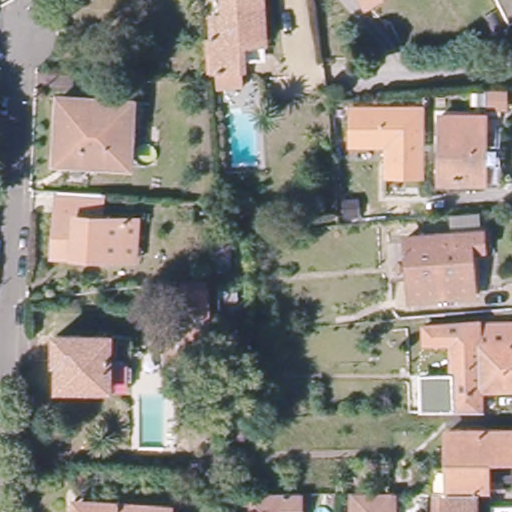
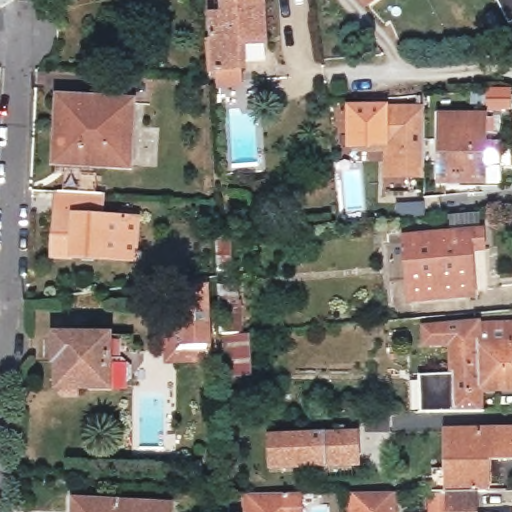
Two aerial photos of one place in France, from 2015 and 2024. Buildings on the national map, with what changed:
unchanged [(221,28),(219,6),(229,5),(229,0),(270,0),(271,26),(250,27),(251,51),(235,52),(235,67),(224,68),(224,61),(215,62),(212,28),(221,28)]
unchanged [(512,14),(505,0),(512,0),(512,14)]
unchanged [(138,104),(131,167),(58,159),(65,95),(138,104)]
unchanged [(384,176),(385,145),(349,144),(350,105),(424,107),(423,177),(384,176)]
unchanged [(498,116),(497,182),(436,181),(437,115),(498,116)]
unchanged [(132,253),(123,253),(52,252),(53,189),(97,190),(95,214),(124,214),(133,214),(132,253)]
unchanged [(467,248),(470,293),(406,299),(402,237),(477,230),(478,248),(467,248)]
unchanged [(496,247),(498,292),(470,293),(467,248),(478,248),(496,247)]
unchanged [(150,362),(148,346),(146,304),(162,303),(161,278),(188,276),(192,343),(193,359),(150,362)]
unchanged [(447,373),(446,341),(419,341),(419,325),(472,324),(472,326),(512,324),(512,388),(475,389),(476,411),(418,412),(417,374),(447,373)]
unchanged [(101,331),(101,353),(117,352),(124,359),(124,377),(118,383),(50,383),(49,331),(101,331)]
demolished [(225,396),(241,395),(241,413),(226,414),(225,396)]
demolished [(226,422),(242,421),(242,441),(227,442),(226,422)]
new [(353,430),(354,463),(277,465),(276,433),(353,430)]
unchanged [(447,493),(447,431),(512,430),(512,456),(491,457),(491,492),(482,492),(482,512),(433,512),(433,492),(447,493)]
unchanged [(397,492),(397,512),(355,512),(355,493),(397,492)]
unchanged [(304,493),(304,512),(250,512),(251,493),(304,493)]
unchanged [(78,505),(118,509),(118,503),(171,507),(171,512),(76,512),(76,508),(78,505)]

